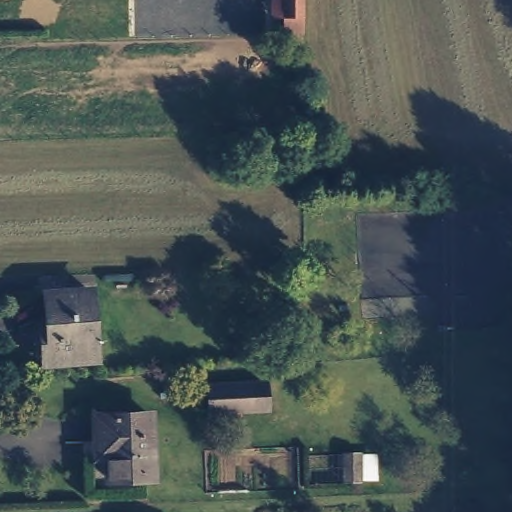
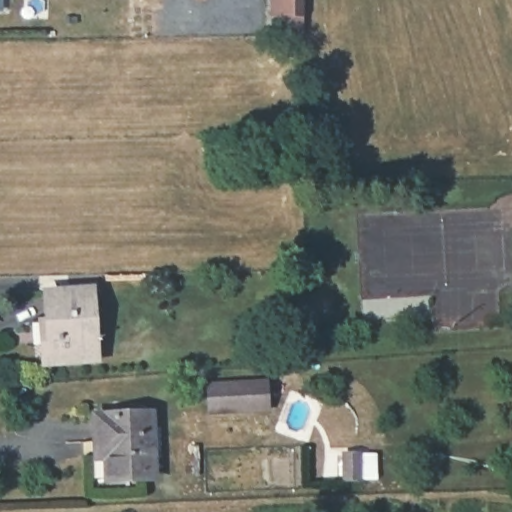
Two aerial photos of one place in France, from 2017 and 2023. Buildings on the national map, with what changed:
unchanged [(284,35),(282,19),(272,19),(271,0),(305,0),(305,35),(284,35)]
unchanged [(41,352),(38,327),(49,326),(47,282),(92,280),(95,350),(41,352)]
unchanged [(212,402),(210,375),(267,372),(269,401),(212,402)]
unchanged [(108,475),(108,439),(95,440),(94,412),(152,410),(153,473),(108,475)]
unchanged [(356,478),(356,451),(375,451),(377,478),(356,478)]

